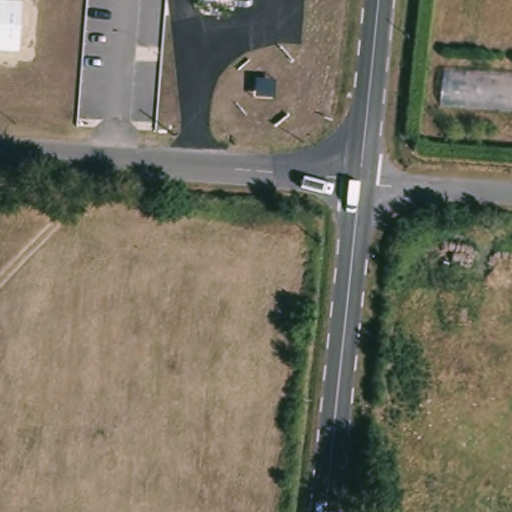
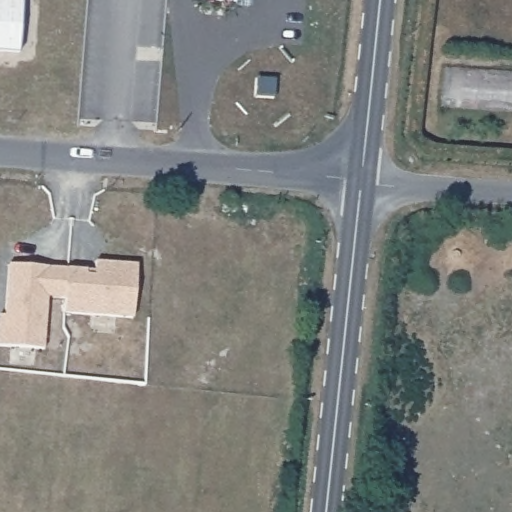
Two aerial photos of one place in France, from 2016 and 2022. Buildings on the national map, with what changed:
unchanged [(0,53),(0,0),(21,0),(17,54),(0,53)]
unchanged [(235,1),(224,0),(252,0),(251,4),(248,8),(235,6),(235,1)]
new [(7,267),(47,271),(64,272),(84,274),(92,275),(93,265),(135,269),(130,322),(60,316),(61,302),(45,300),(41,353),(0,349),(0,319),(2,319),(7,267)]

